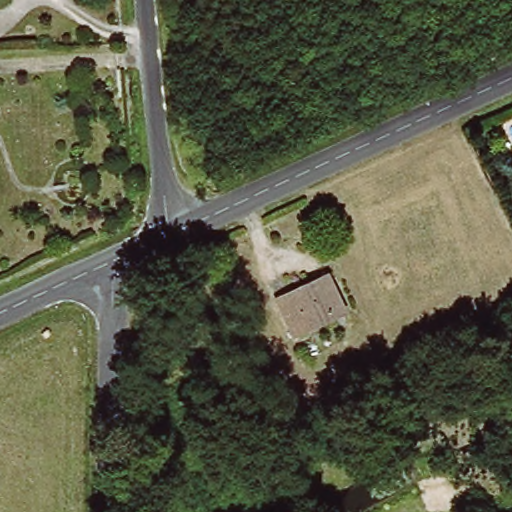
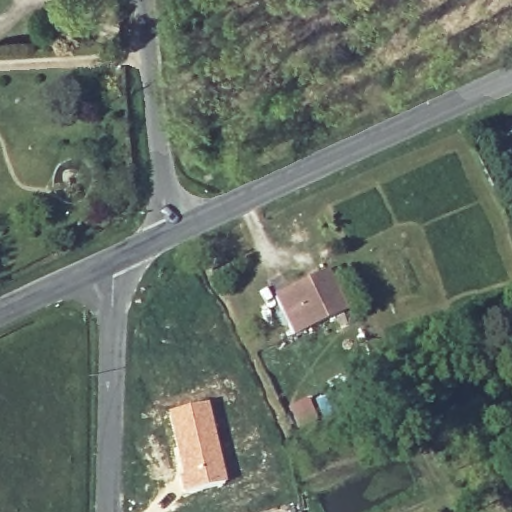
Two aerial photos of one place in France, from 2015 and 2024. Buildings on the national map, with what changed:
unchanged [(299,336),(278,297),(314,281),(333,273),(337,283),(350,310),(299,336)]
new [(307,400),(319,422),(299,432),(289,408),(307,400)]
new [(207,403),(226,484),(182,493),(167,412),(207,403)]

